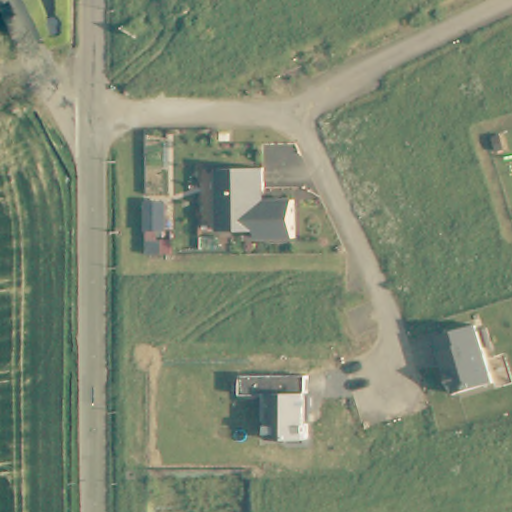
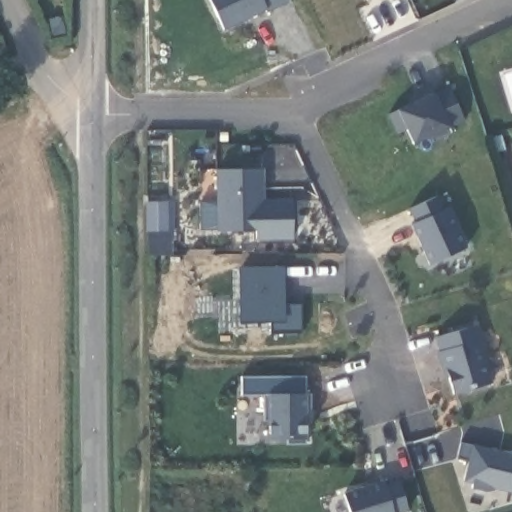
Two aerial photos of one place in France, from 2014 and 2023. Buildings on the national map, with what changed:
new [(268,11),(266,8),(223,30),(209,0),(286,0),(288,4),(268,11)]
new [(448,87),(464,120),(450,127),(452,134),(434,141),(431,136),(411,143),(396,109),(434,93),(448,87)]
unchanged [(258,240),(257,231),(219,232),(216,170),(264,170),(265,201),(292,201),(293,242),(258,240)]
new [(450,207),(468,247),(430,265),(412,225),(415,223),(409,209),(439,195),(450,207)]
new [(148,200),(175,200),(174,253),(150,254),(148,200)]
new [(284,267),(284,303),(301,304),(301,334),(270,333),(270,322),(239,321),(238,267),(284,267)]
unchanged [(438,336),(476,326),(492,385),(453,395),(438,336)]
unchanged [(269,395),(243,395),(243,378),(307,378),(306,393),(309,393),(309,440),(267,441),(269,395)]
new [(512,492),(463,480),(468,462),(457,460),(461,442),(472,445),(512,453),(512,492)]
new [(384,480),(385,485),(399,480),(410,511),(408,512),(350,512),(344,493),(384,480)]

